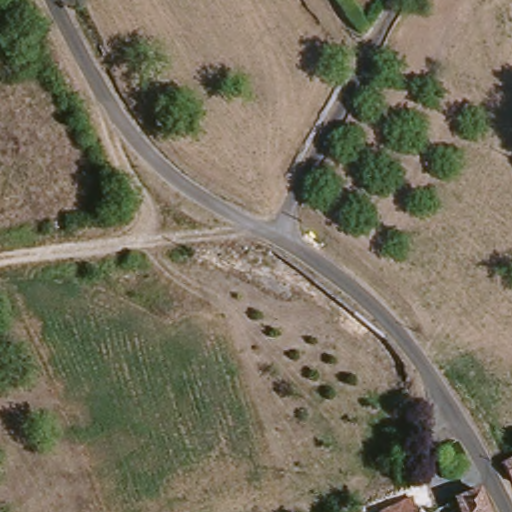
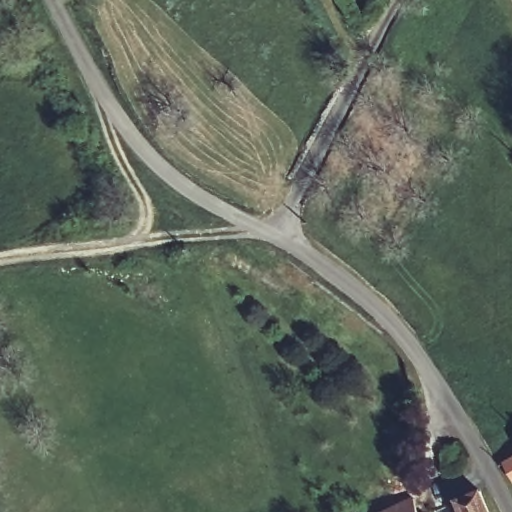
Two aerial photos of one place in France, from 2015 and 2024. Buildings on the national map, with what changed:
unchanged [(512,458),(512,484),(501,463),(512,458)]
unchanged [(486,493),(495,512),(471,512),(467,503),(486,493)]
unchanged [(432,512),(403,512),(427,502),(432,512)]

